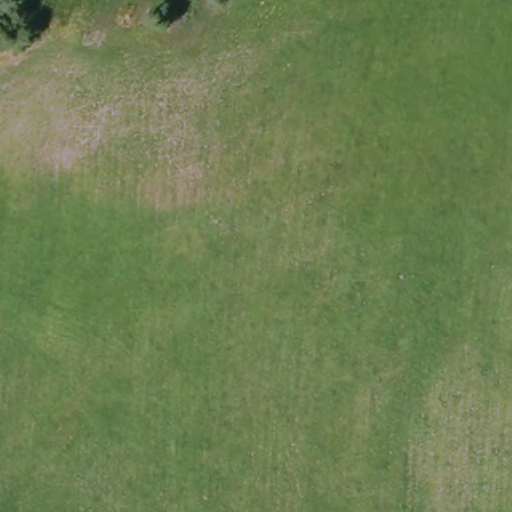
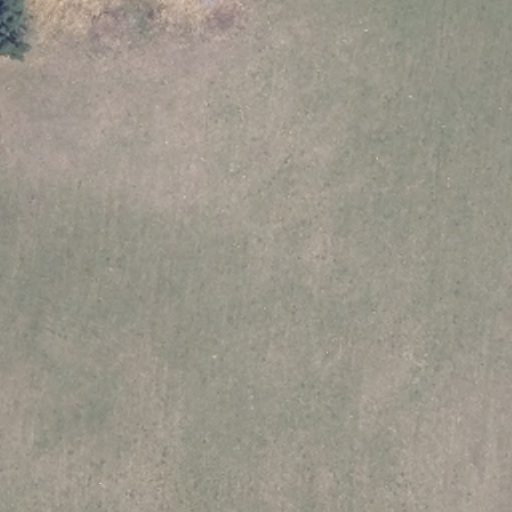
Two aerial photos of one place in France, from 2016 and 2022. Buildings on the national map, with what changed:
[]

